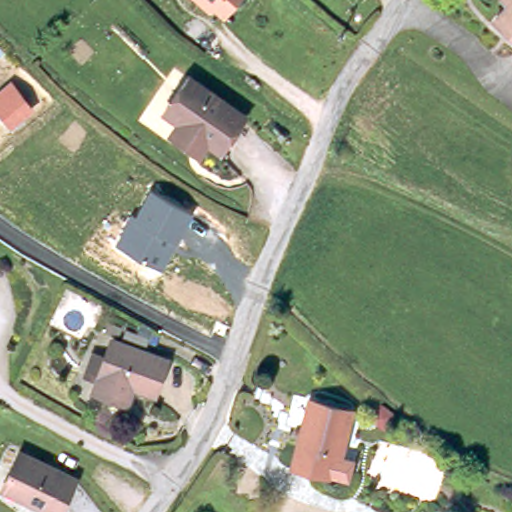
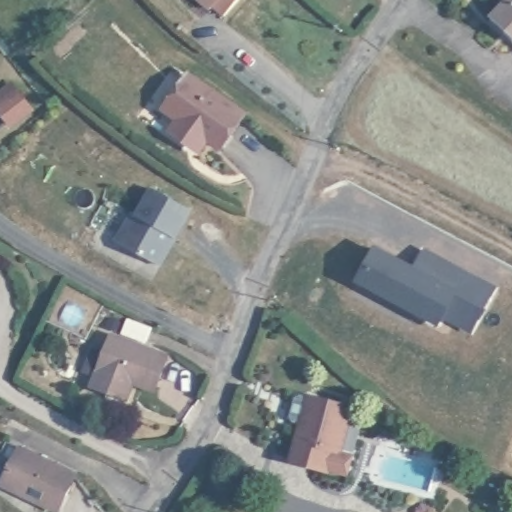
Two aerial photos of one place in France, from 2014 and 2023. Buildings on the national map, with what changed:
unchanged [(222,15),(212,6),(209,10),(199,0),(237,0),(222,15)]
unchanged [(491,9),(499,0),(512,0),(512,27),(491,9)]
unchanged [(168,127),(171,122),(175,115),(160,105),(183,69),(242,110),(218,144),(205,134),(197,145),(168,127)]
unchanged [(10,128),(0,115),(0,89),(11,81),(35,111),(10,128)]
unchanged [(135,214),(150,187),(192,211),(163,265),(115,239),(131,211),(135,214)]
new [(355,283),(376,246),(417,267),(425,247),(498,286),(472,334),(445,319),(440,328),(355,283)]
unchanged [(85,383),(103,332),(157,352),(145,384),(125,377),(120,395),(85,383)]
unchanged [(288,458),(299,419),(302,420),(309,393),(349,404),(338,447),(327,444),(322,466),(288,458)]
unchanged [(22,451),(76,477),(60,512),(56,512),(25,497),(3,485),(5,481),(22,451)]

